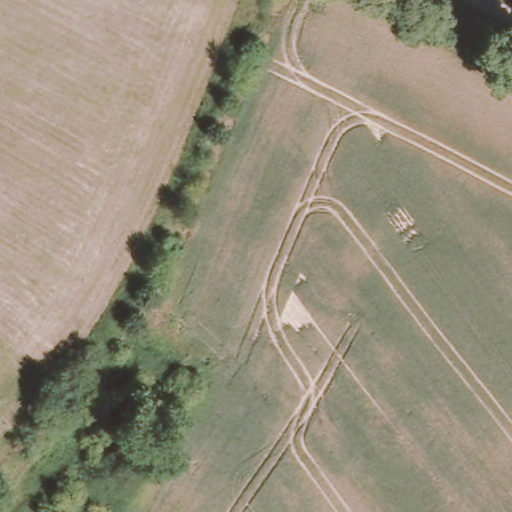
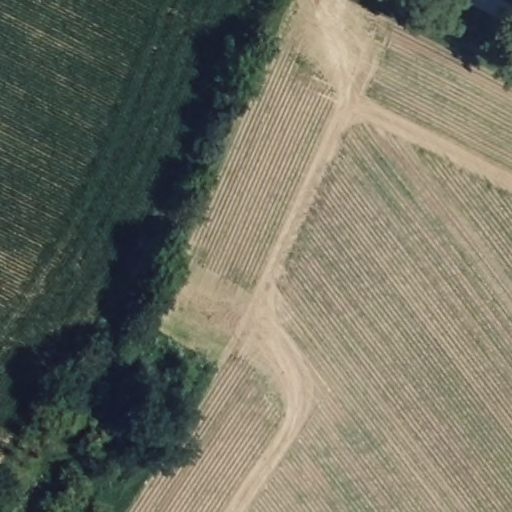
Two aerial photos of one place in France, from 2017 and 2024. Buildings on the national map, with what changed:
unchanged [(139,430),(163,387),(185,400),(163,441),(146,433),(139,430)]

